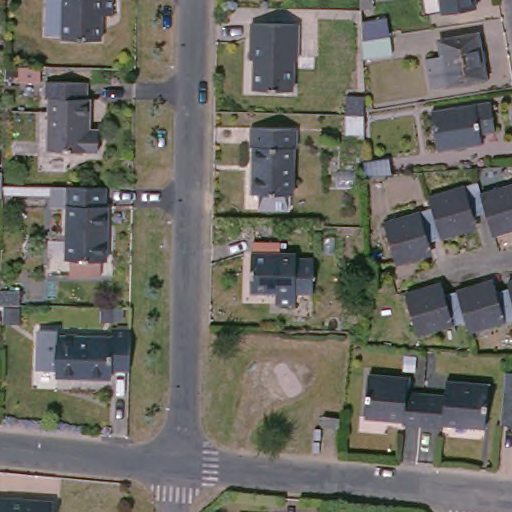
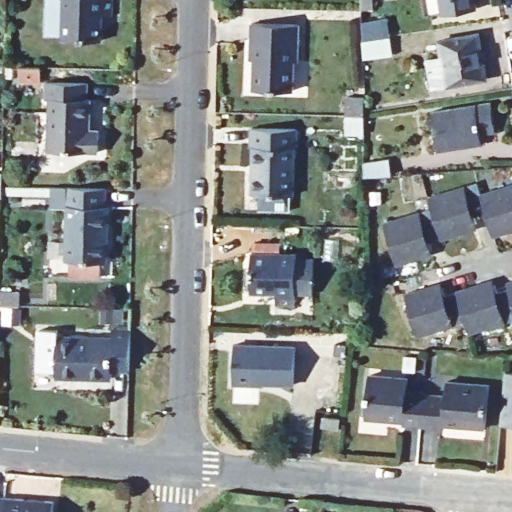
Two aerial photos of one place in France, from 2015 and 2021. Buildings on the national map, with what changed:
unchanged [(51,3),(54,0),(114,0),(114,19),(105,18),(104,42),(65,40),(65,39),(55,38),(50,33),(51,3)]
unchanged [(360,15),(359,0),(372,0),(372,15),(360,15)]
unchanged [(441,15),(439,0),(475,0),(476,8),(441,15)]
unchanged [(362,65),(362,45),(360,27),(387,25),(390,41),(392,60),(362,65)]
unchanged [(297,30),(295,66),(292,66),(292,95),(252,95),(254,65),(248,65),(250,29),(297,30)]
unchanged [(479,35),(486,79),(432,89),(428,61),(443,60),(441,41),(479,35)]
unchanged [(44,84),(22,84),(22,67),(44,67),(44,84)]
unchanged [(90,99),(94,99),(92,130),(104,131),(102,154),(52,152),(53,101),(50,101),(51,84),(89,85),(90,99)]
unchanged [(490,102),(495,133),(480,135),(481,145),(438,152),(431,112),(490,102)]
unchanged [(345,142),(345,124),(345,106),(364,106),(365,117),(363,124),(364,141),(345,142)]
unchanged [(296,153),(292,152),(291,199),(288,199),(288,213),(257,212),(258,197),(252,197),(253,151),(250,151),(250,131),(297,131),(296,153)]
unchanged [(363,180),(363,167),(388,165),(391,179),(363,180)]
unchanged [(507,232),(488,237),(483,220),(471,224),(472,229),(456,234),(458,239),(427,248),(428,252),(411,258),(413,262),(395,268),(383,226),(431,211),(426,200),(475,185),(480,196),(512,186),(512,225),(506,227),(507,232)]
unchanged [(106,207),(109,207),(107,262),(67,261),(70,189),(107,190),(106,207)]
unchanged [(295,257),(312,257),(311,293),(295,293),(295,303),(277,302),(277,292),(250,291),(252,251),(255,252),(255,242),(282,244),(281,253),(295,254),(295,257)]
unchanged [(470,320),(420,332),(407,292),(423,287),(425,292),(441,288),(443,293),(472,285),(474,289),(490,285),(492,291),(504,288),(502,283),(512,281),(512,318),(472,328),(470,320)]
unchanged [(114,371),(114,380),(57,378),(59,339),(114,340),(114,332),(133,332),(132,372),(114,371)]
new [(232,352),(293,354),(292,392),(231,390),(232,352)]
unchanged [(406,427),(406,422),(369,418),(373,372),(409,375),(408,390),(426,391),(422,428),(406,427)]
unchanged [(512,374),(512,427),(499,426),(503,373),(512,374)]
unchanged [(426,391),(448,392),(450,378),(490,381),(486,429),(447,426),(447,430),(422,428),(426,391)]
unchanged [(338,426),(338,437),(320,435),(321,425),(338,426)]
unchanged [(54,505),(53,512),(0,512),(0,500),(54,505)]

